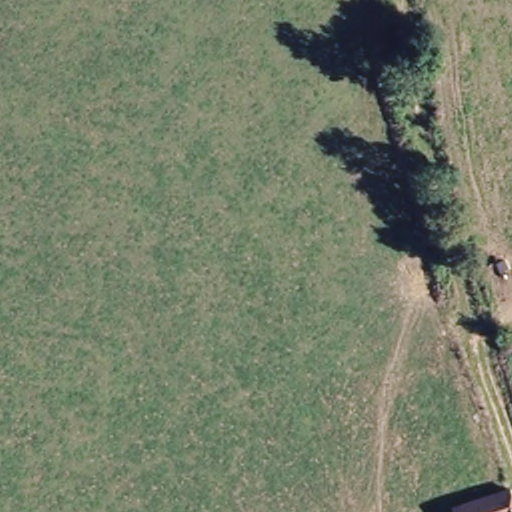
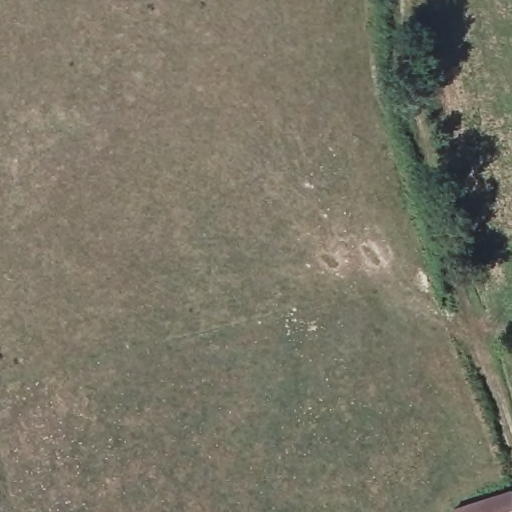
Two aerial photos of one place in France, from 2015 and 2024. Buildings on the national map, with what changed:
unchanged [(512,483),(512,512),(455,512),(451,500),(512,483)]

